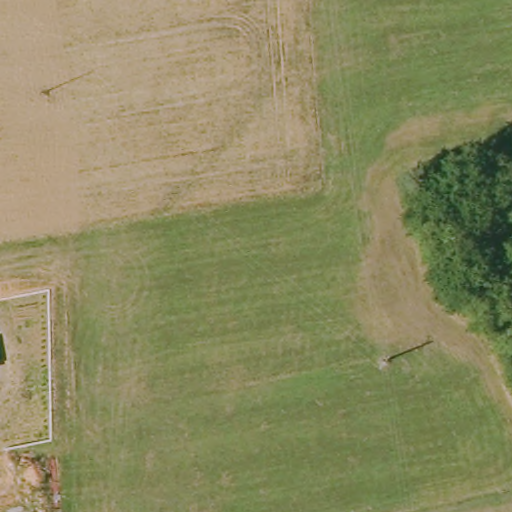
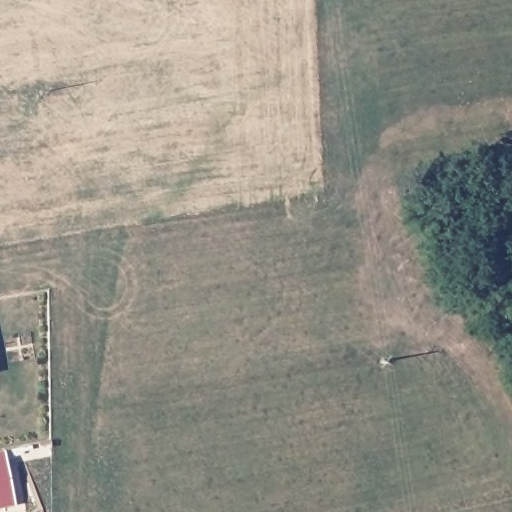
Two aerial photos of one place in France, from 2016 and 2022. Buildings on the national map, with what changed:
new [(15,505),(0,508),(0,451),(5,450),(15,505)]

